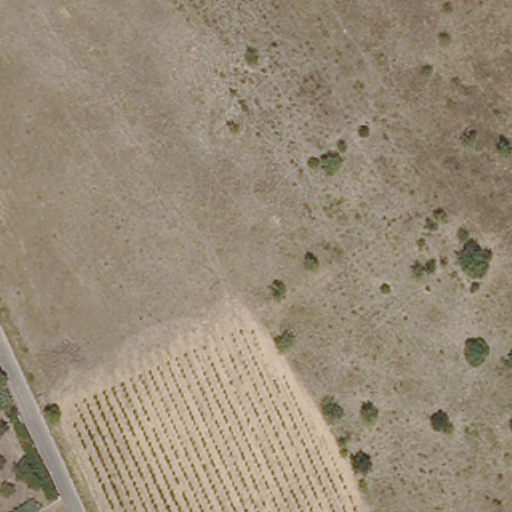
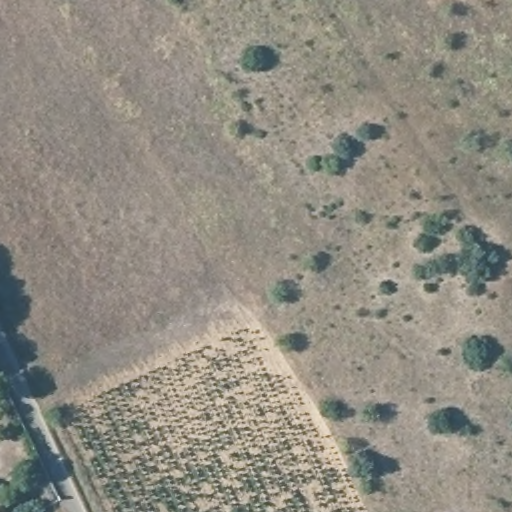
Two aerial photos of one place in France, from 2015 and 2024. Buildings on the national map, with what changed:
[]

